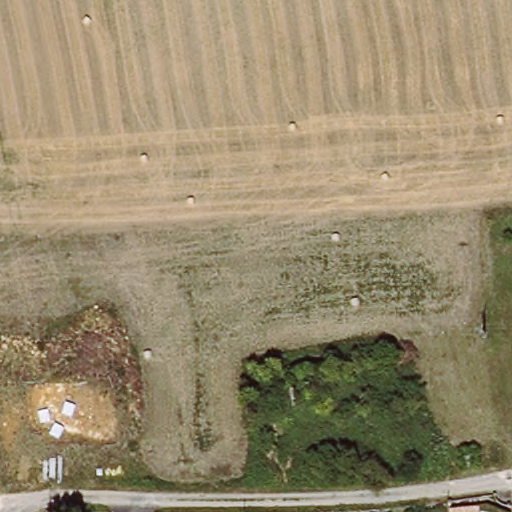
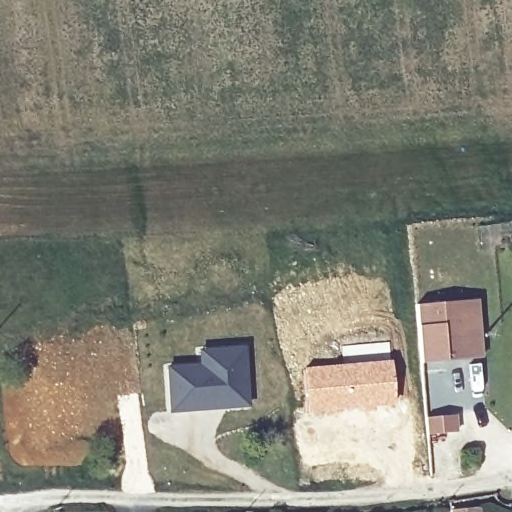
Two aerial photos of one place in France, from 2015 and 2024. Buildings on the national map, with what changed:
new [(415,304),(478,299),(483,357),(420,363),(415,304)]
new [(356,356),(342,357),(341,345),(390,341),(391,357),(396,405),(306,414),(303,366),(356,361),(356,356)]
new [(166,368),(201,364),(200,350),(246,344),(251,406),(170,411),(166,368)]
new [(475,512),(451,512),(475,509),(475,512)]

